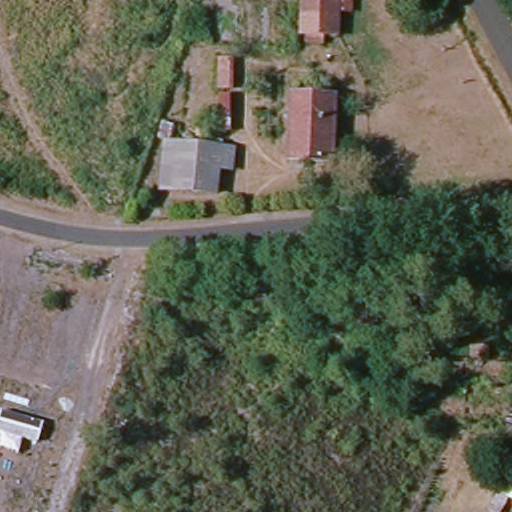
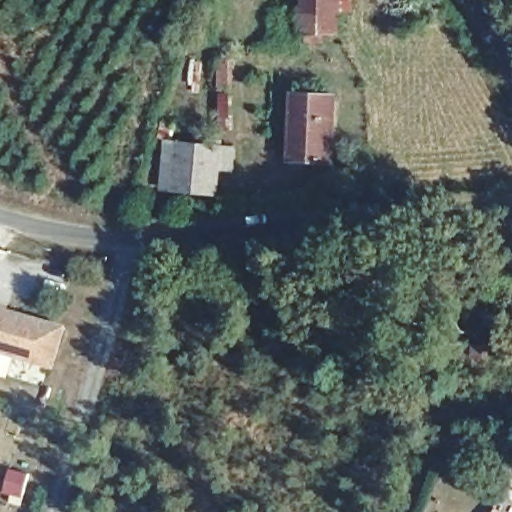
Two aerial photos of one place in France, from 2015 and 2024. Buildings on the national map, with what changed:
unchanged [(338,0),(338,31),(303,31),(303,14),(303,0),(338,0)]
unchanged [(329,97),(328,161),(289,161),(290,96),(329,97)]
unchanged [(223,145),(222,190),(168,189),(169,142),(223,145)]
new [(11,305),(9,310),(68,326),(56,368),(0,353),(0,301),(11,305)]
unchanged [(482,503),(474,499),(493,462),(499,452),(512,459),(512,485),(509,491),(493,483),(482,503)]

